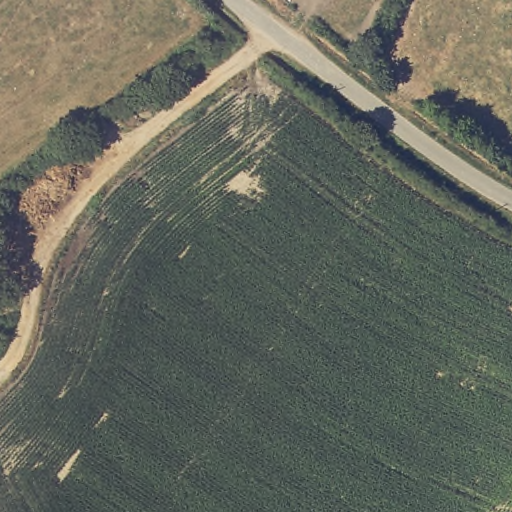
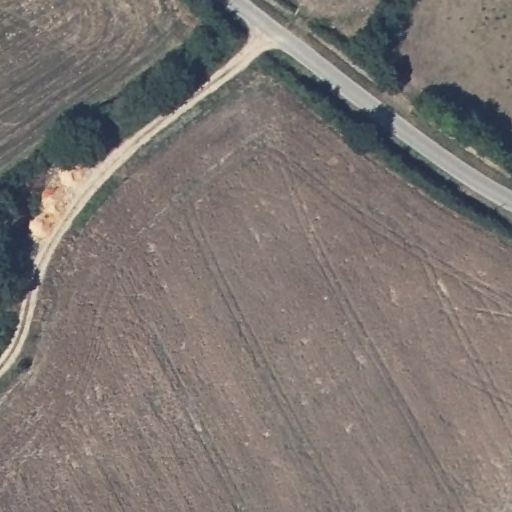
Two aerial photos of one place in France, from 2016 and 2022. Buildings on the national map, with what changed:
[]

